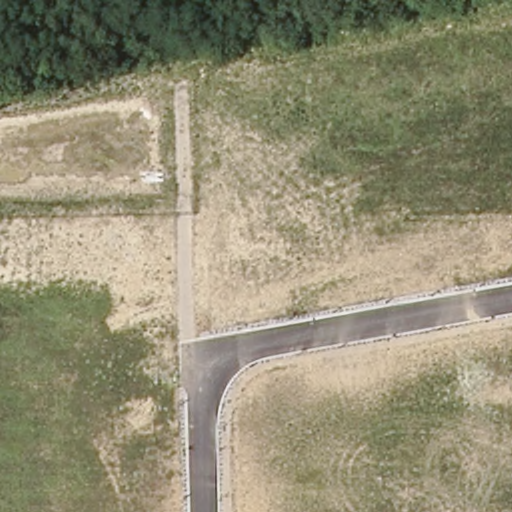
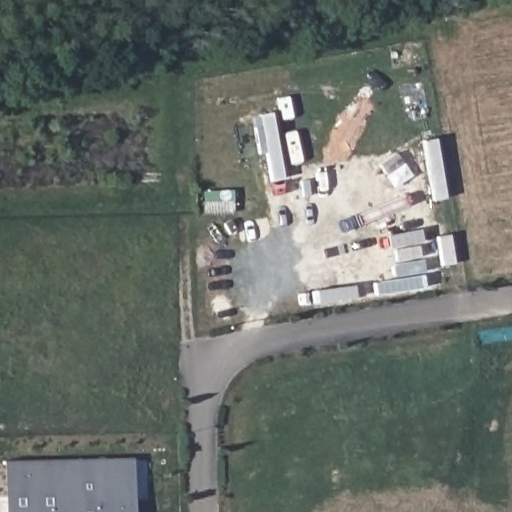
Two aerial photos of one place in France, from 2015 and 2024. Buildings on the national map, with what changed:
new [(131,457),(133,512),(3,512),(3,462),(131,457)]

